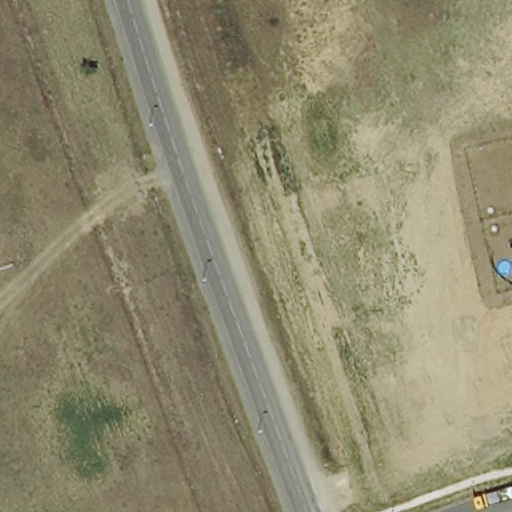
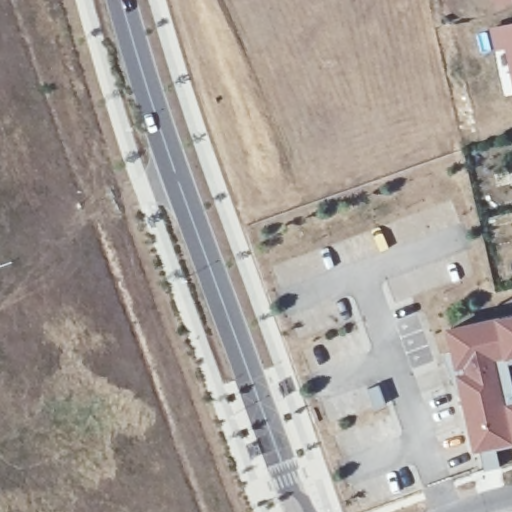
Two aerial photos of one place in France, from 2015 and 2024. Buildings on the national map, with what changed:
new [(502,2),(502,0),(511,0),(502,2)]
new [(502,48),(498,29),(512,26),(512,45),(502,48)]
new [(512,317),(512,353),(463,364),(460,352),(455,330),(512,317)]
new [(463,364),(512,353),(512,361),(512,421),(500,368),(466,375),(470,394),(464,396),(449,355),(460,352),(463,364)]
new [(491,470),(485,446),(482,447),(470,394),(466,375),(500,368),(512,421),(512,440),(501,442),(507,467),(491,470)]

